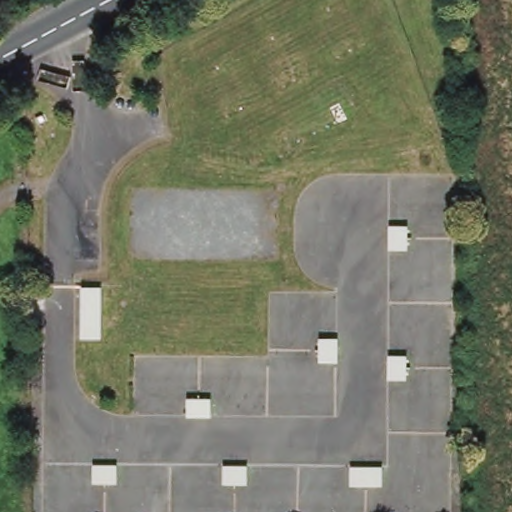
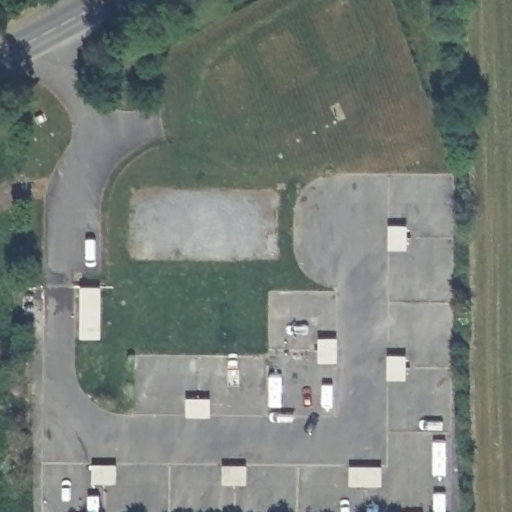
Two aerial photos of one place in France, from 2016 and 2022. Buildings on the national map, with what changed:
unchanged [(405,224),(405,227),(413,227),(412,245),(405,245),(405,247),(395,247),(395,224),(405,224)]
unchanged [(97,288),(95,339),(77,338),(79,287),(97,288)]
unchanged [(323,337),(331,337),(331,335),(340,335),(340,358),(330,358),(330,355),(323,355),(323,337)]
unchanged [(401,353),(401,356),(409,356),(408,375),(401,375),(401,377),(391,377),(392,353),(401,353)]
unchanged [(210,393),(210,400),(212,400),(212,410),(189,410),(189,400),(192,400),(191,392),(210,393)]
unchanged [(117,457),(117,467),(115,467),(114,475),(96,474),(96,466),(94,466),(94,456),(117,457)]
unchanged [(247,461),(247,470),(245,470),(244,478),(226,477),(226,470),(224,470),(224,460),(247,461)]
unchanged [(382,465),(382,475),(380,475),(379,482),(366,481),(366,474),(363,474),(363,465),(382,465)]

